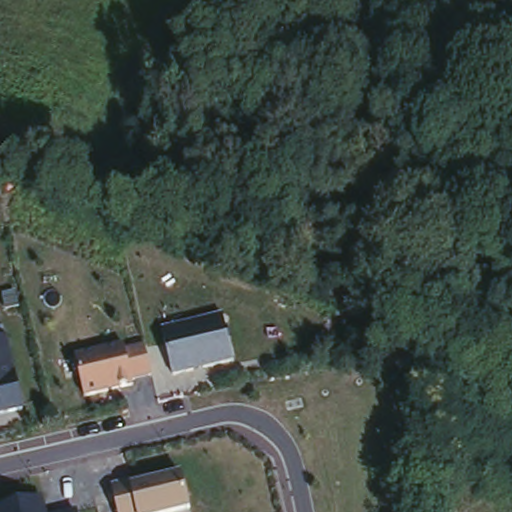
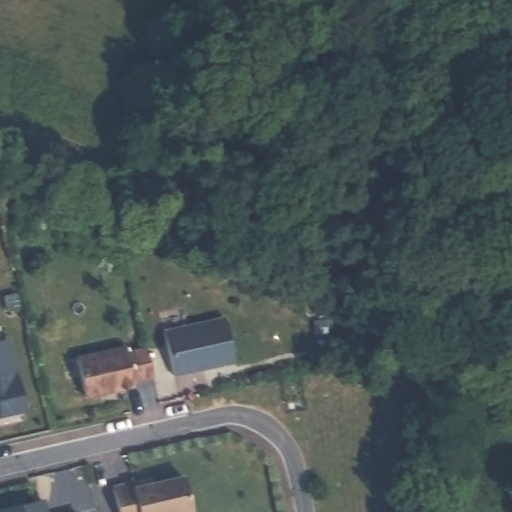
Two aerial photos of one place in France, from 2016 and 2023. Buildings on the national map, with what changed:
unchanged [(236,361),(175,376),(164,331),(225,316),(236,361)]
unchanged [(16,378),(20,377),(27,409),(0,415),(0,343),(9,341),(16,378)]
unchanged [(127,345),(128,350),(147,347),(154,378),(136,381),(137,388),(86,399),(77,356),(127,345)]
unchanged [(195,509),(184,512),(117,512),(111,487),(151,476),(152,482),(184,474),(195,509)]
unchanged [(0,511),(47,499),(50,512),(0,512),(0,511)]

